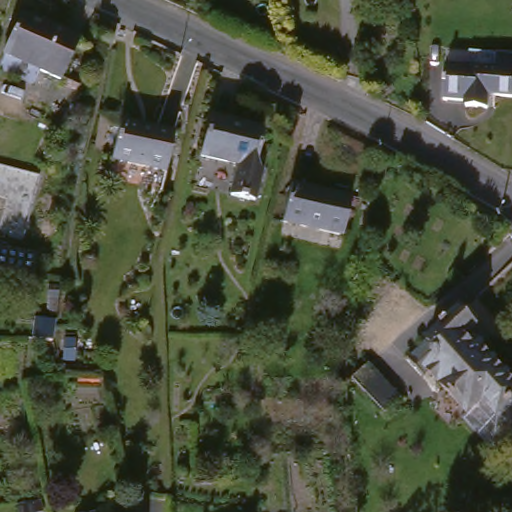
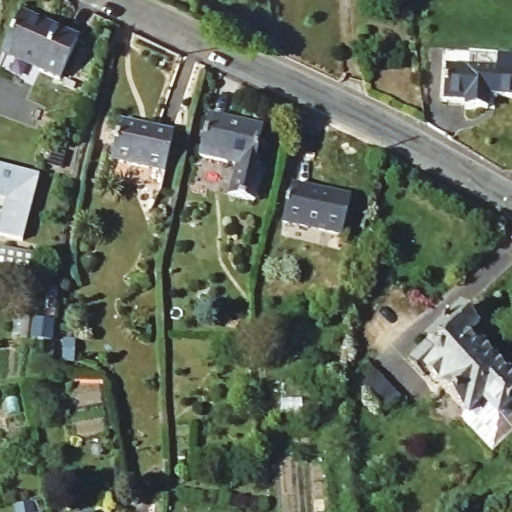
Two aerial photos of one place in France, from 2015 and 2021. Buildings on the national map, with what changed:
unchanged [(14,14),(73,40),(54,81),(31,71),(33,66),(0,51),(0,43),(14,14)]
unchanged [(512,59),(512,96),(488,95),(486,113),(464,112),(464,105),(439,103),(441,56),(466,57),(495,58),(512,59)]
unchanged [(231,171),(193,164),(199,124),(254,130),(249,171),(258,172),(253,206),(229,203),(231,171)]
unchanged [(156,177),(104,162),(114,125),(167,140),(156,177)]
unchanged [(30,187),(12,250),(0,247),(0,178),(30,187)]
unchanged [(279,222),(291,184),(346,203),(333,240),(279,222)]
unchanged [(34,286),(0,280),(0,264),(36,270),(34,286)]
unchanged [(461,327),(512,382),(512,415),(483,442),(454,411),(459,406),(419,363),(413,368),(399,352),(453,301),(470,319),(461,327)]
unchanged [(348,382),(364,367),(396,401),(380,416),(348,382)]

